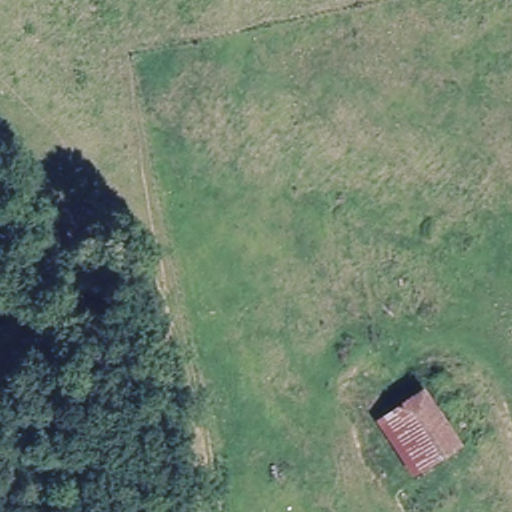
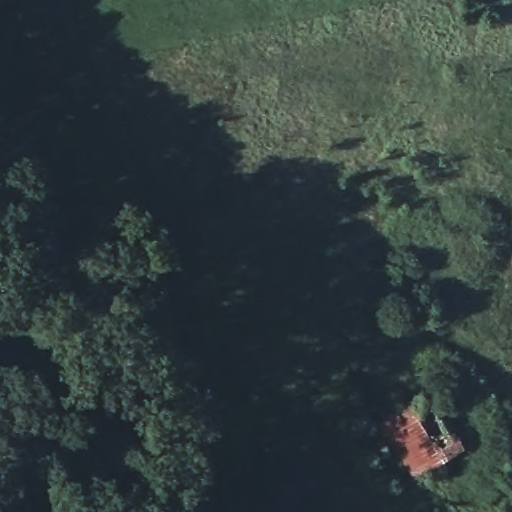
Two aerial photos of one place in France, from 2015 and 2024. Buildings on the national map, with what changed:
unchanged [(456,461),(412,488),(405,478),(375,428),(421,397),(456,461)]

